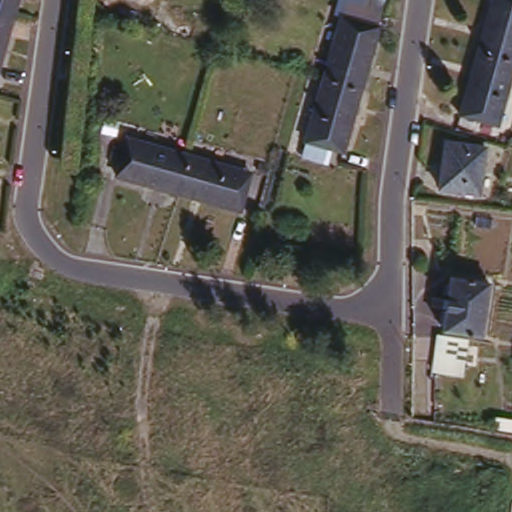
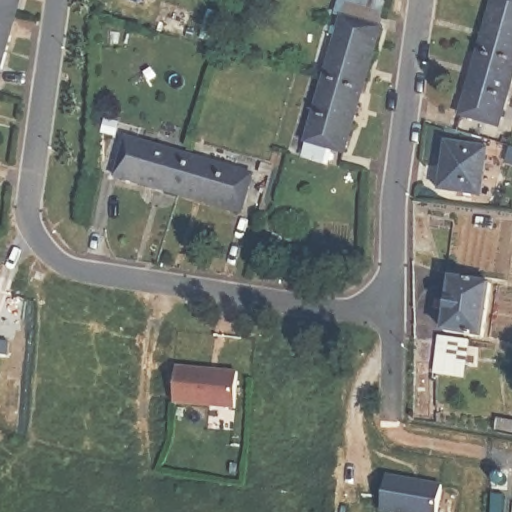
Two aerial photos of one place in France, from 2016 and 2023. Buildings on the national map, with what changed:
unchanged [(15,14),(0,9),(0,0),(19,0),(15,14)]
unchanged [(347,18),(335,12),(340,0),(382,0),(386,2),(378,28),(347,18)]
unchanged [(512,61),(510,66),(471,55),(487,0),(512,0),(512,61)]
unchanged [(15,14),(0,68),(0,9),(15,14)]
unchanged [(328,79),(347,18),(382,29),(364,90),(328,79)]
unchanged [(510,66),(493,127),(466,120),(454,117),(471,55),(510,66)]
unchanged [(304,159),(308,144),(328,79),(364,90),(344,154),(332,151),(328,165),(304,159)]
unchanged [(105,156),(115,120),(139,127),(136,140),(190,156),(179,190),(117,172),(102,168),(105,156)]
unchanged [(488,149),(482,195),(441,191),(447,143),(488,149)]
unchanged [(190,156),(252,174),(242,209),(179,190),(190,156)]
unchanged [(472,332),(450,327),(460,275),(497,281),(488,335),(472,332)]
unchanged [(471,338),(465,375),(439,370),(445,334),(471,338)]
new [(179,362),(239,371),(235,411),(176,405),(179,362)]
new [(496,473),(498,472),(500,472),(505,475),(507,478),(507,481),(505,485),(500,486),(497,486),(495,483),(493,478),(496,473)]
new [(441,512),(400,512),(387,510),(392,477),(444,487),(441,512)]
new [(512,512),(502,512),(501,496),(512,495),(512,512)]

